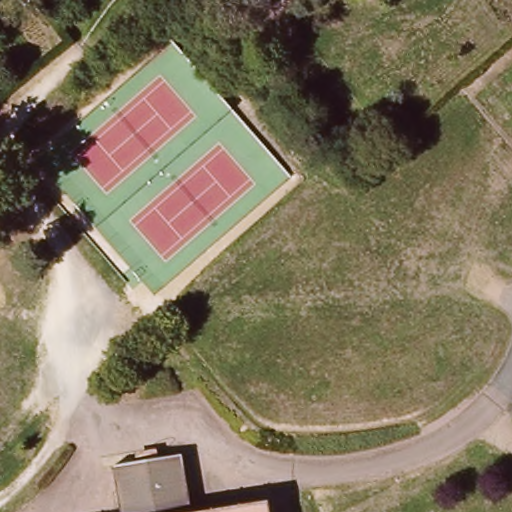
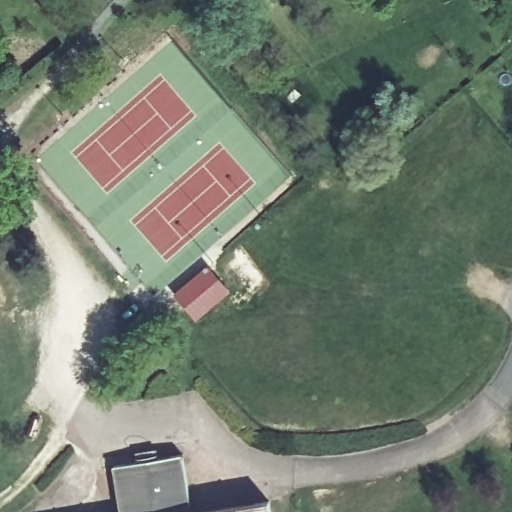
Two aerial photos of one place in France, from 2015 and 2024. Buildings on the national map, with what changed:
demolished [(0,94),(0,61),(16,80),(0,94)]
new [(208,266),(228,290),(195,319),(174,294),(208,266)]
unchanged [(190,509),(190,512),(117,512),(111,471),(180,459),(190,509)]
unchanged [(268,512),(228,512),(267,505),(268,512)]

